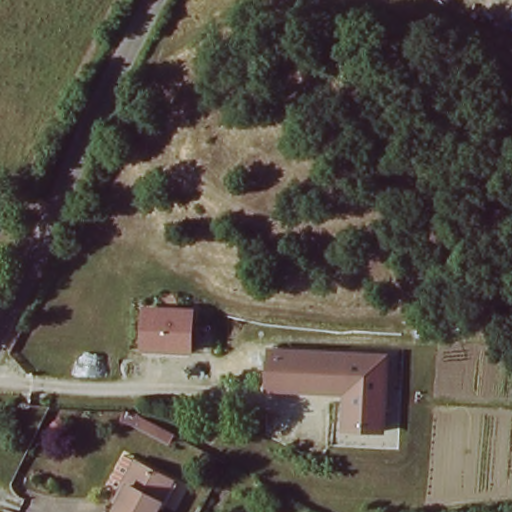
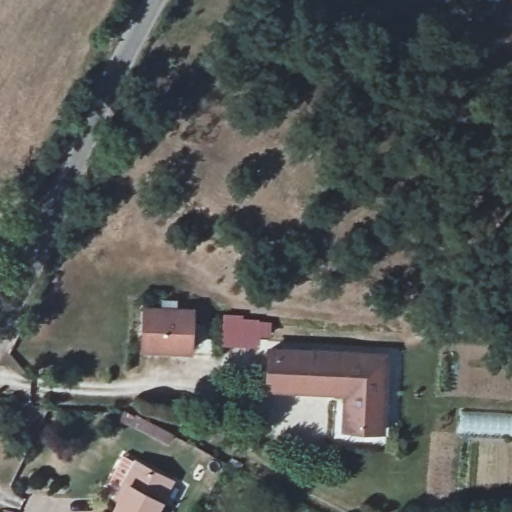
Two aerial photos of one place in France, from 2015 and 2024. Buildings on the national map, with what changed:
new [(512,11),(512,30),(504,26),(512,11)]
unchanged [(195,307),(195,352),(143,351),(145,305),(195,307)]
unchanged [(498,312),(495,331),(480,326),(485,308),(498,312)]
new [(225,313),(242,315),(242,318),(273,322),(271,337),(262,336),(261,348),(221,345),(225,313)]
unchanged [(395,432),(348,430),(347,395),(272,391),(270,353),(392,356),(395,432)]
unchanged [(168,445),(130,422),(123,422),(125,412),(132,412),(173,435),(168,445)]
unchanged [(125,496),(120,492),(142,452),(148,456),(180,473),(158,512),(108,512),(111,506),(117,509),(125,496)]

